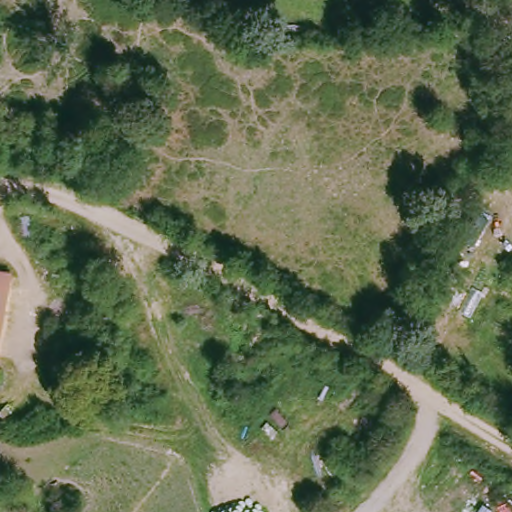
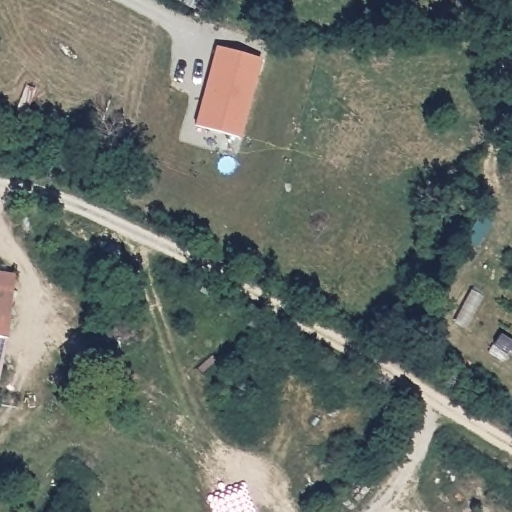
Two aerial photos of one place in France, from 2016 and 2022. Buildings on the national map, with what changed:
new [(213,61),(210,60),(216,44),(258,59),(230,136),(188,120),(198,93),(200,94),(213,61)]
unchanged [(17,275),(0,380),(0,272),(17,275)]

